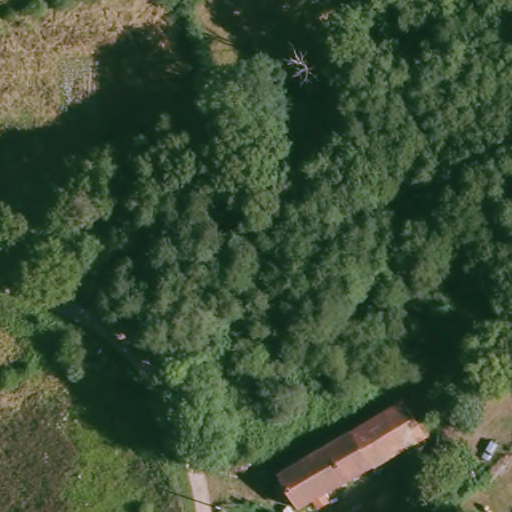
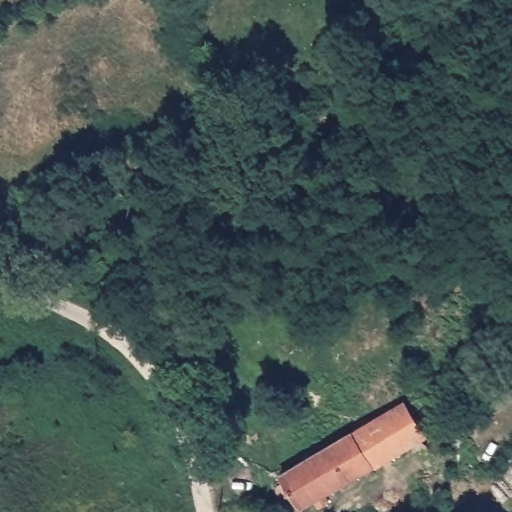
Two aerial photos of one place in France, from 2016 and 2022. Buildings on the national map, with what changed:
unchanged [(328,446),(406,401),(415,413),(425,433),(348,478),(328,446)]
unchanged [(318,452),(328,446),(348,478),(301,505),(293,493),(286,496),(281,494),(277,487),(286,478),(284,472),(318,452)]

